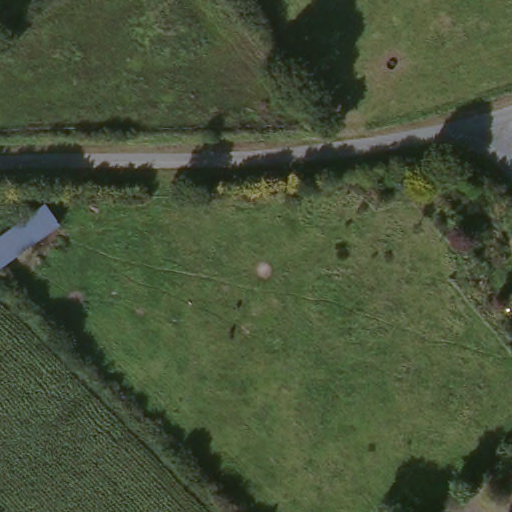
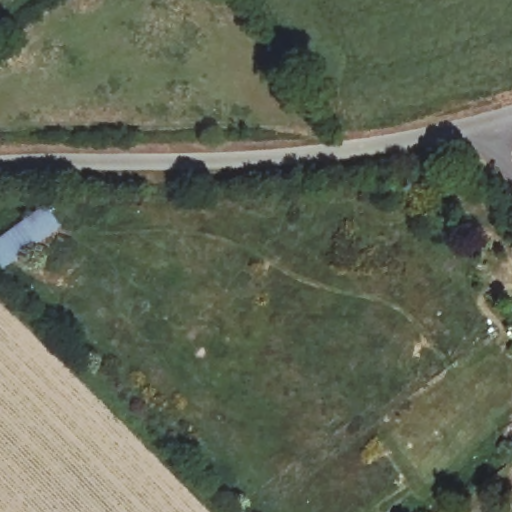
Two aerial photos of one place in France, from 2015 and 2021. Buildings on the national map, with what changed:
unchanged [(0,274),(0,241),(41,207),(57,232),(0,274)]

